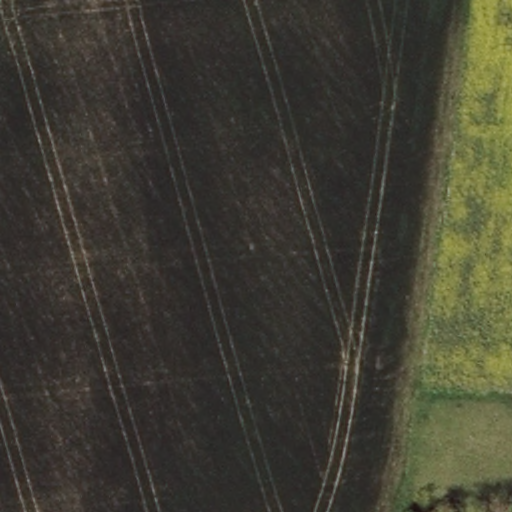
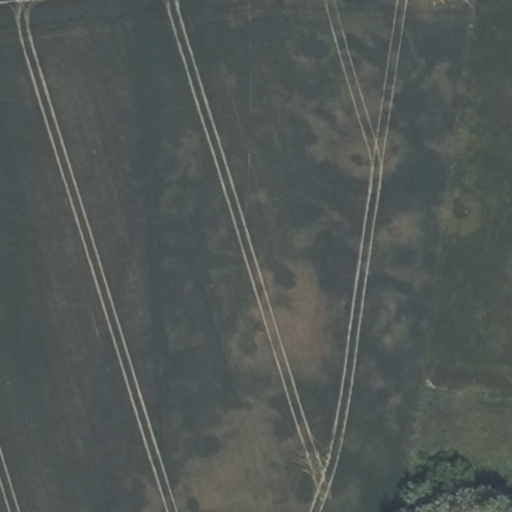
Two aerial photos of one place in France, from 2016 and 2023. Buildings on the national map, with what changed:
[]

